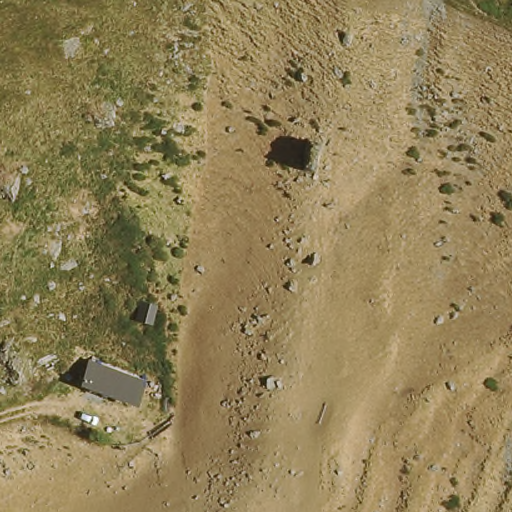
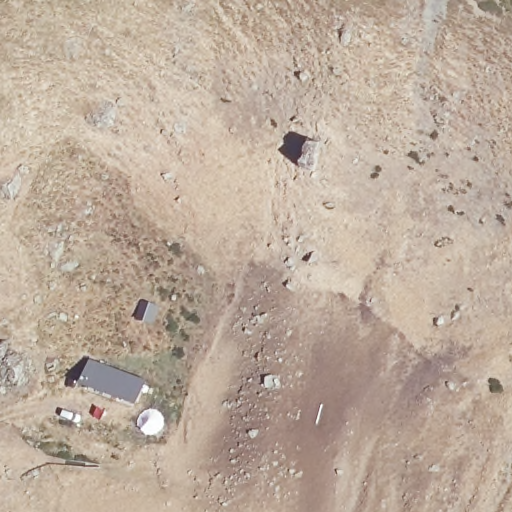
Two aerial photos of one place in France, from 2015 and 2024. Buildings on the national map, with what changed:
unchanged [(132,372),(125,396),(86,385),(87,360),(132,372)]

